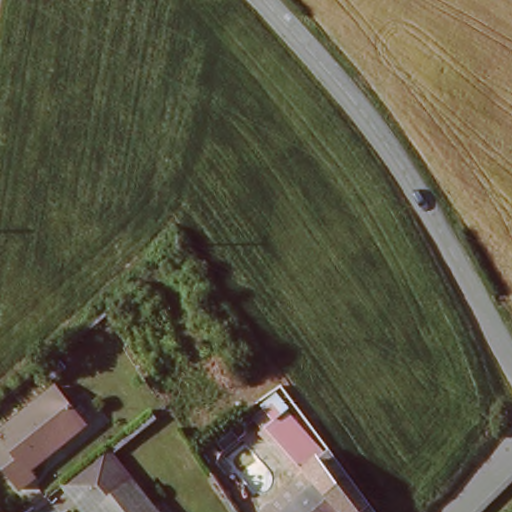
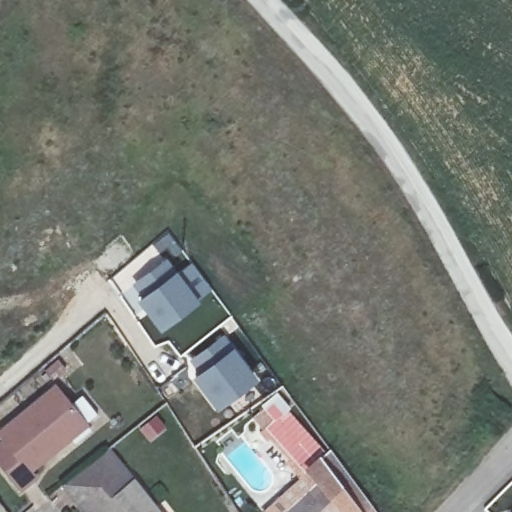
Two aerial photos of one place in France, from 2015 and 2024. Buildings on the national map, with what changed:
new [(133,284),(168,258),(177,272),(200,302),(160,332),(137,301),(142,297),(133,284)]
new [(202,372),(193,360),(225,336),(235,348),(259,380),(218,412),(193,379),(202,372)]
unchanged [(34,473),(19,485),(0,461),(0,440),(4,437),(0,431),(0,426),(53,386),(78,418),(83,426),(53,449),(30,467),(34,473)]
unchanged [(320,447),(301,463),(263,423),(282,406),(320,447)]
unchanged [(381,512),(340,512),(336,508),(316,482),(301,463),(320,447),(381,512)]
unchanged [(115,457),(156,512),(81,512),(68,495),(115,457)]
unchanged [(331,512),(281,512),(316,482),(336,508),(331,512)]

